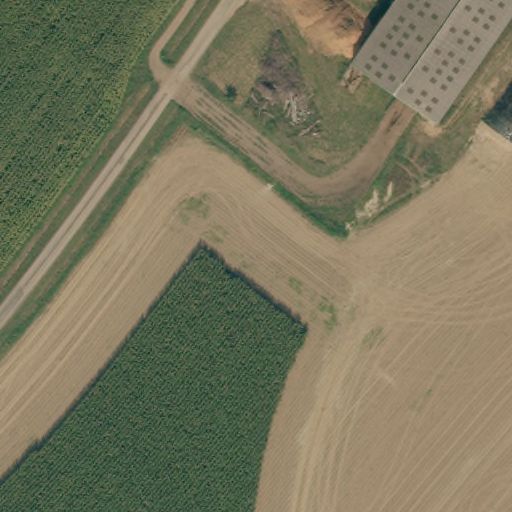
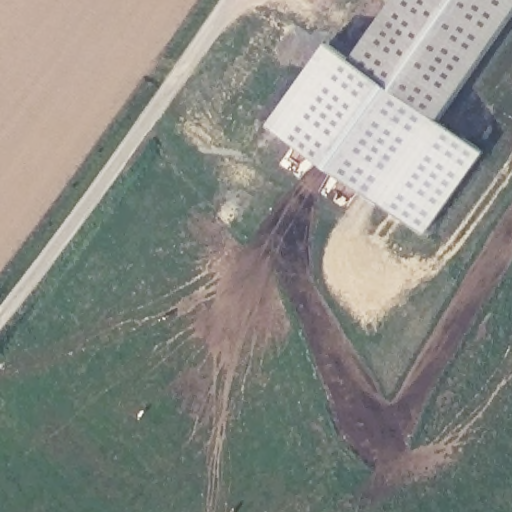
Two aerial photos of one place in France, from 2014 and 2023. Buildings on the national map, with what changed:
unchanged [(356,64),(397,2),(395,0),(512,0),(512,20),(443,122),(356,64)]
new [(443,122),(483,151),(426,236),(270,129),(325,44),(356,64),(443,122)]

